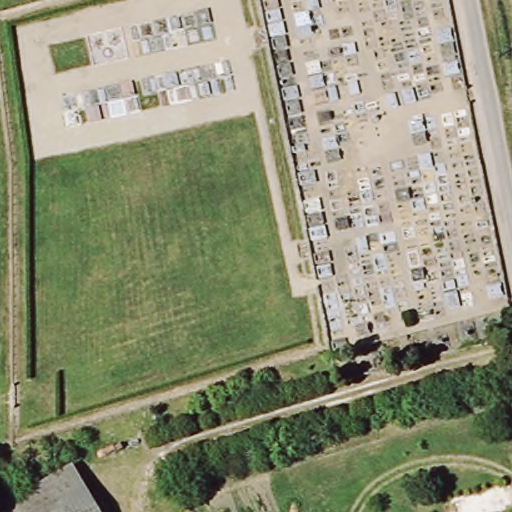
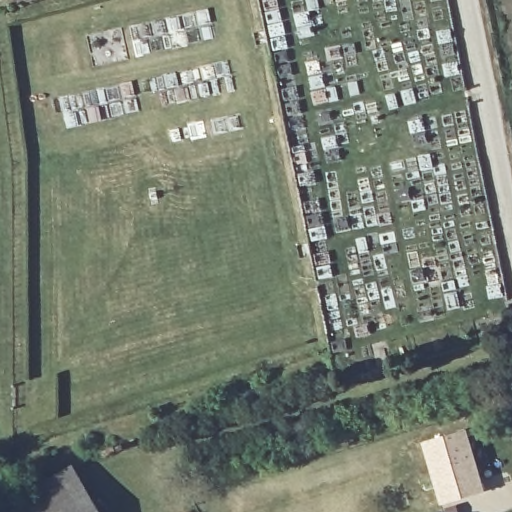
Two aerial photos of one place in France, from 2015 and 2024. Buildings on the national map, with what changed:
new [(424,446),(465,433),(484,496),(442,508),(424,446)]
unchanged [(54,497),(82,481),(100,512),(64,512),(54,497)]
unchanged [(54,497),(64,512),(27,512),(54,497)]

